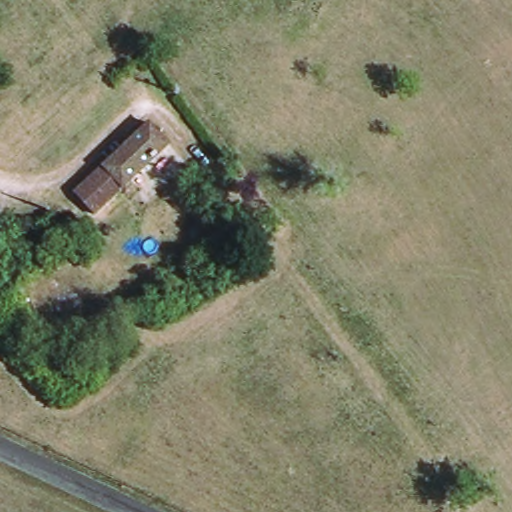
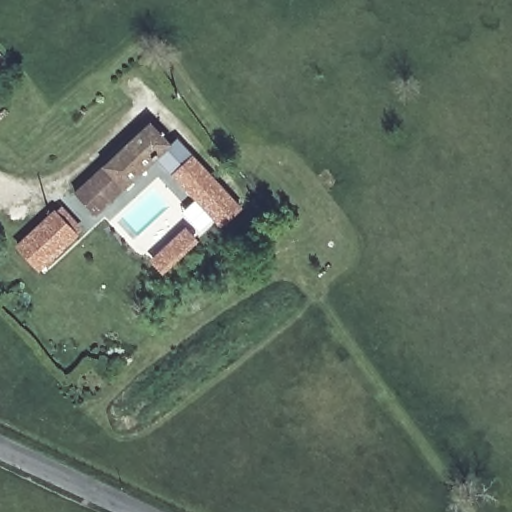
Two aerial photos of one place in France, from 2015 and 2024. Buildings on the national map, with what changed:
unchanged [(96,222),(76,197),(151,125),(172,149),(96,222)]
new [(177,139),(240,206),(220,226),(159,161),(172,149),(170,146),(177,139)]
new [(14,246),(55,210),(56,212),(61,208),(82,229),(77,234),(80,237),(40,272),(14,246)]

